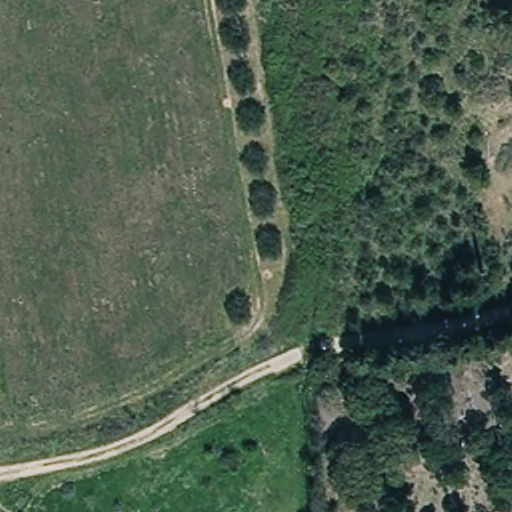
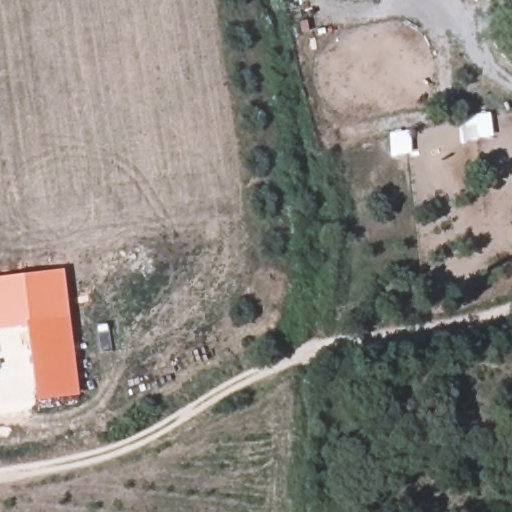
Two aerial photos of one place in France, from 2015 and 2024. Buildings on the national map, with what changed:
new [(63,269),(70,316),(25,321),(25,325),(0,329),(0,277),(63,269)]
new [(70,316),(78,395),(35,401),(25,321),(70,316)]

